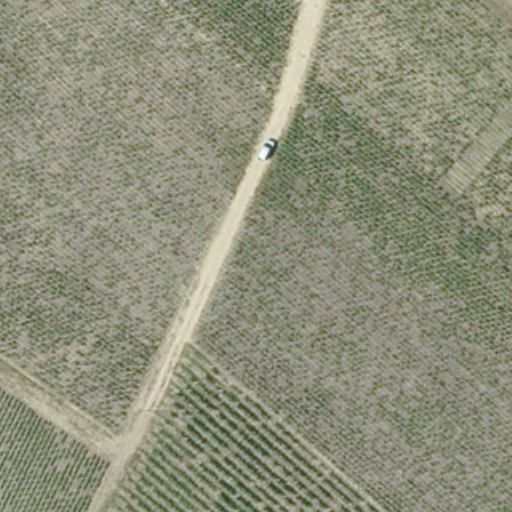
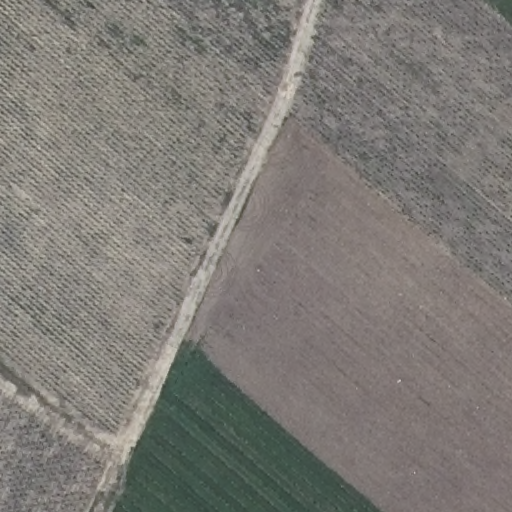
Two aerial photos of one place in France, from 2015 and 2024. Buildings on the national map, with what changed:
[]

